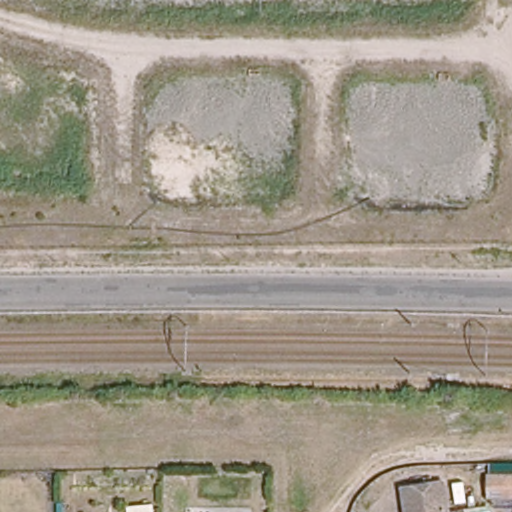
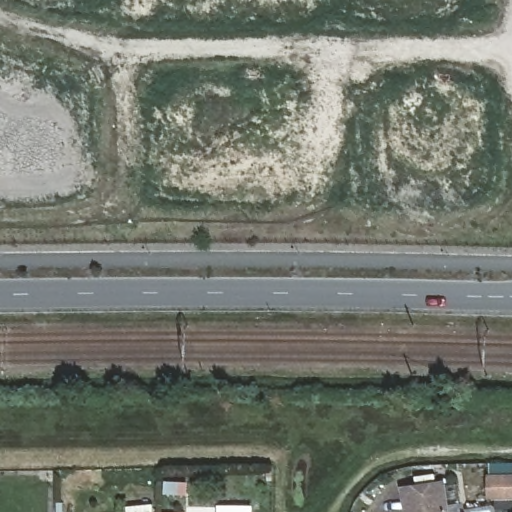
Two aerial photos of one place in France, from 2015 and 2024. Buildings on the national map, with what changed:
unchanged [(512,496),(490,497),(490,478),(512,478),(512,496)]
unchanged [(403,491),(445,484),(448,512),(407,512),(403,491)]

